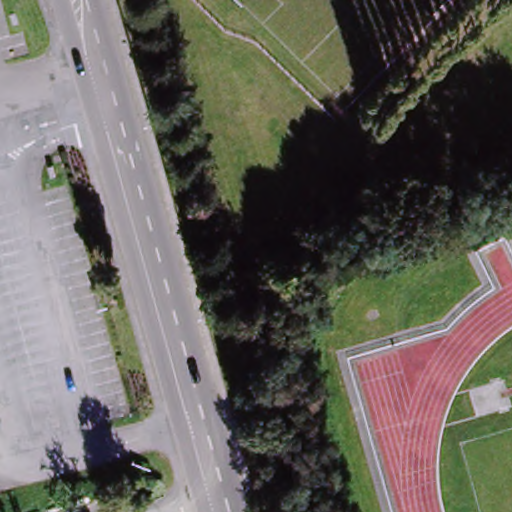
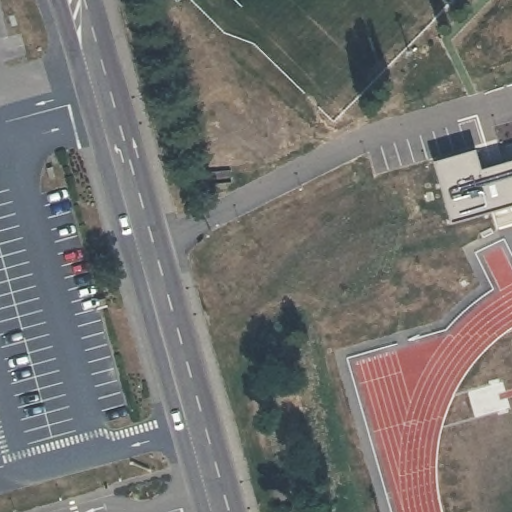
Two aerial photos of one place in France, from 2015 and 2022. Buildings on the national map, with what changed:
new [(472,149),(481,169),(512,159),(512,203),(455,220),(435,162),(472,149)]

